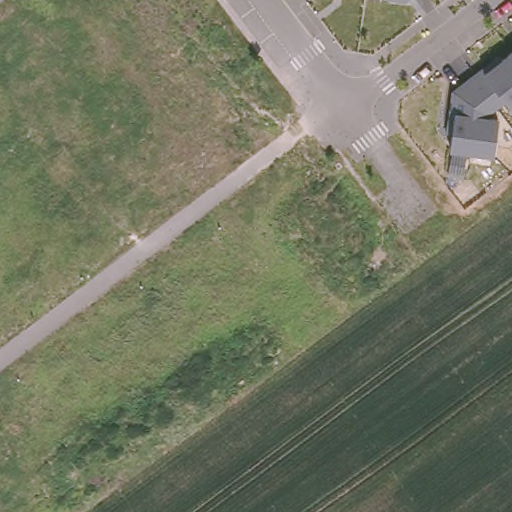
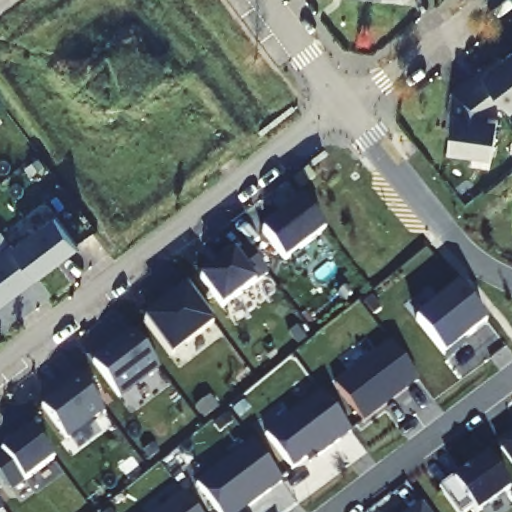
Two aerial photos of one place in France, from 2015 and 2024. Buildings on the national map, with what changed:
unchanged [(512,44),(512,108),(504,114),(496,152),(447,148),(456,85),(512,44)]
new [(0,139),(0,110),(15,129),(0,139)]
new [(292,179),(306,167),(314,176),(299,188),(292,179)]
new [(301,200),(326,231),(282,261),(259,229),(301,200)]
new [(54,214),(76,244),(35,275),(13,246),(54,214)]
new [(238,225),(266,260),(217,294),(187,261),(238,225)]
new [(0,305),(0,251),(10,243),(36,277),(0,305)]
new [(144,320),(188,288),(223,334),(179,368),(144,320)]
new [(453,290),(482,327),(444,363),(411,324),(453,290)]
new [(118,395),(94,361),(121,344),(118,339),(131,329),(156,365),(118,395)]
new [(334,385),(390,343),(418,379),(362,420),(334,385)]
new [(43,405),(65,386),(62,381),(74,372),(105,410),(68,438),(43,405)]
new [(314,453),(293,468),(268,434),(320,393),(351,431),(318,458),(314,453)]
new [(0,479),(0,454),(31,431),(53,461),(10,493),(0,479)]
new [(499,449),(512,440),(512,467),(499,449)]
new [(197,490),(253,448),(283,487),(250,512),(214,512),(197,490)]
new [(477,511),(474,507),(466,512),(459,512),(440,488),(453,478),(455,482),(488,457),(510,488),(477,511)]
new [(185,493),(199,512),(160,512),(185,493)]
new [(0,510),(0,500),(5,506),(0,510)]
new [(423,509),(425,512),(419,512),(423,509)]

